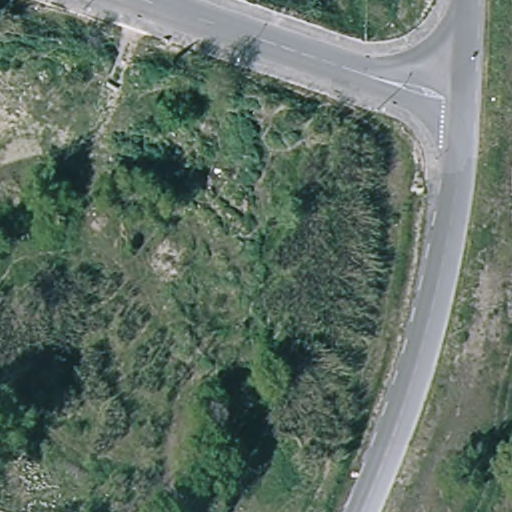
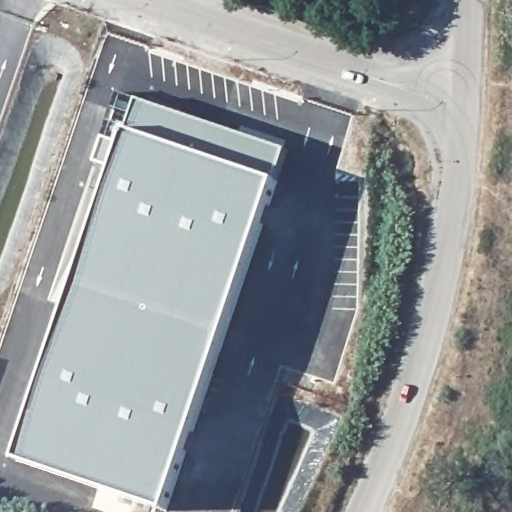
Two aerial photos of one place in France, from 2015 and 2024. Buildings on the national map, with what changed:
new [(279,180),(167,511),(18,461),(115,170),(96,162),(105,137),(124,144),(128,131),(139,101),(289,150),(279,180)]

